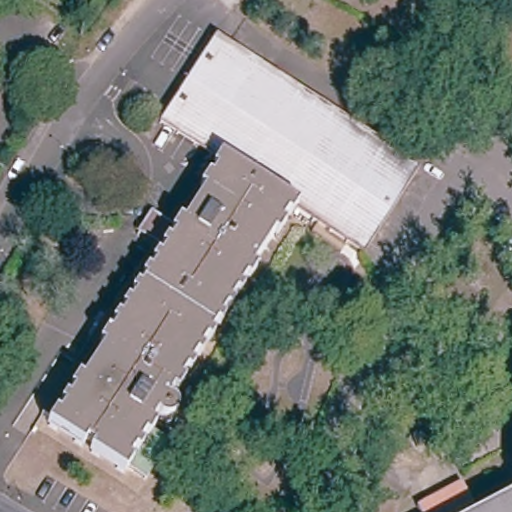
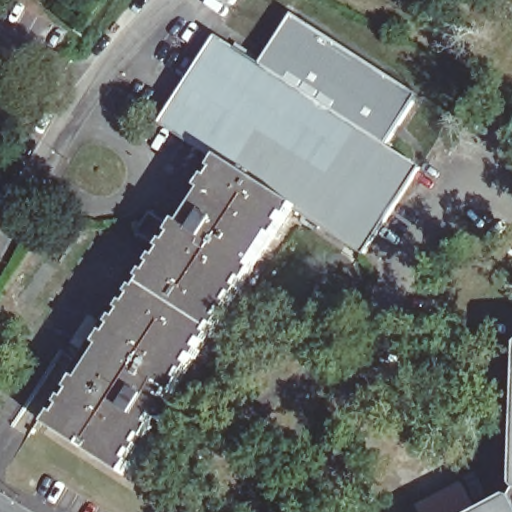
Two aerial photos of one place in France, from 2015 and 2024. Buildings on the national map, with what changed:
new [(415,96),(386,144),(356,124),(261,64),(292,15),(415,96)]
unchanged [(166,118),(220,38),(356,124),(425,170),(369,253),(335,231),(297,206),(213,330),(171,393),(171,398),(177,405),(179,411),(178,418),(176,421),(171,423),(166,422),(156,418),(149,428),(168,441),(144,478),(107,456),(40,411),(107,310),(121,318),(169,247),(141,229),(154,210),(182,228),(227,161),(166,118)]
unchanged [(466,480),(484,512),(423,512),(419,504),(466,480)]
unchanged [(485,512),(512,499),(512,512),(485,512)]
unchanged [(286,512),(267,512),(272,503),(286,512)]

